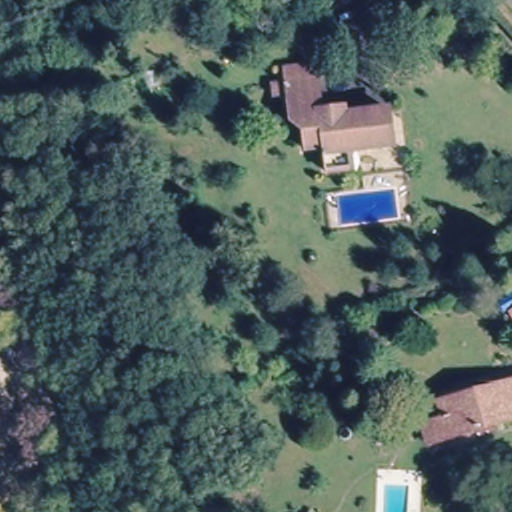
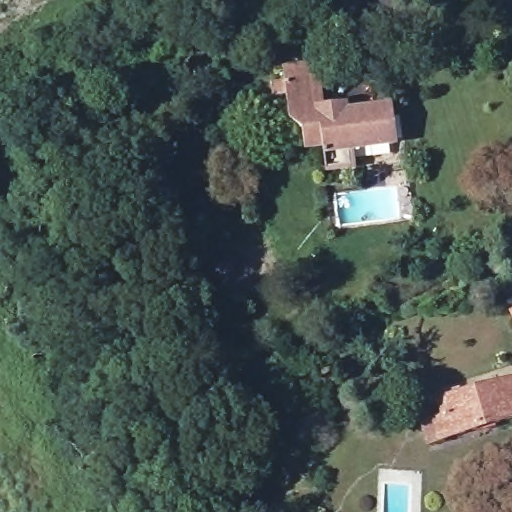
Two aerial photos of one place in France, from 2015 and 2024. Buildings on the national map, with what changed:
unchanged [(345,145),(346,167),(319,168),(317,146),(295,146),(294,126),(275,106),(274,59),(292,58),(293,71),(317,69),(320,111),(390,107),(391,144),(345,145)]
unchanged [(440,431),(454,426),(449,408),(512,387),(512,425),(445,447),(440,431)]

